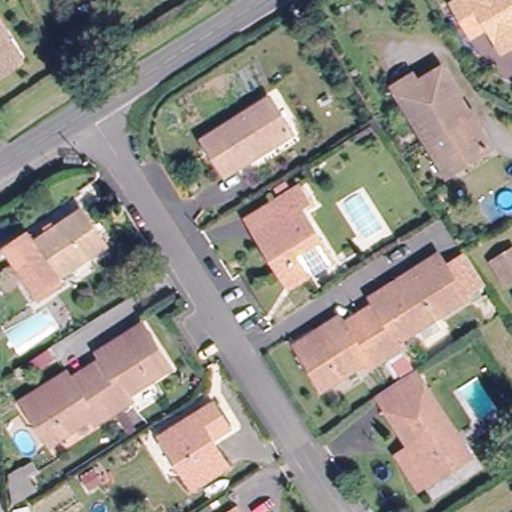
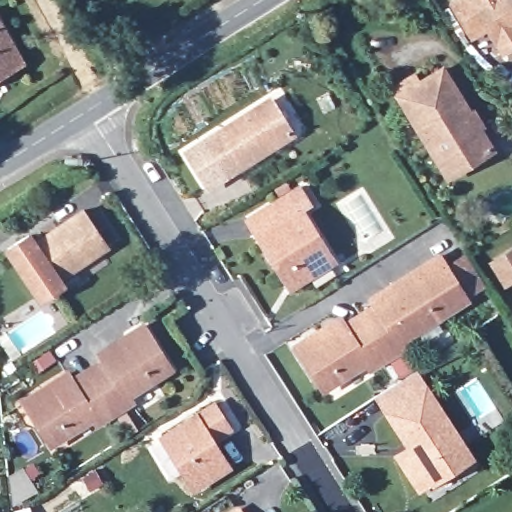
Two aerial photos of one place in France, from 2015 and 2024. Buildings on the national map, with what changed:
unchanged [(493,43),(483,29),(467,38),(448,6),(460,0),(512,0),(512,45),(499,53),(493,43)]
unchanged [(0,80),(0,23),(25,65),(0,80)]
unchanged [(436,152),(397,88),(414,77),(420,86),(444,72),(487,145),(453,166),(447,170),(436,152)]
unchanged [(221,168),(202,140),(263,99),(285,131),(225,173),(221,168)]
unchanged [(270,253),(258,235),(280,222),(271,209),(298,192),(307,206),(298,212),(331,259),(300,279),(291,285),(270,253)]
unchanged [(32,243),(80,212),(102,247),(57,278),(62,285),(39,298),(9,250),(27,237),(32,243)]
unchanged [(512,250),(512,284),(502,289),(486,262),(512,250)]
unchanged [(336,325),(375,302),(370,295),(399,277),(418,265),(435,255),(462,300),(396,340),(401,349),(365,369),(360,362),(321,387),(293,341),(311,330),(331,318),(336,325)]
unchanged [(70,384),(84,376),(104,362),(97,354),(118,341),(136,328),(166,371),(125,398),(131,404),(97,428),(91,419),(52,448),(23,405),(43,392),(65,377),(70,384)]
unchanged [(418,491),(404,466),(415,459),(378,394),(412,373),(466,460),(452,469),(432,482),(418,491)]
unchanged [(226,425),(206,440),(225,466),(195,489),(160,441),(211,404),(226,425)]
unchanged [(243,512),(236,512),(240,509),(243,512)]

